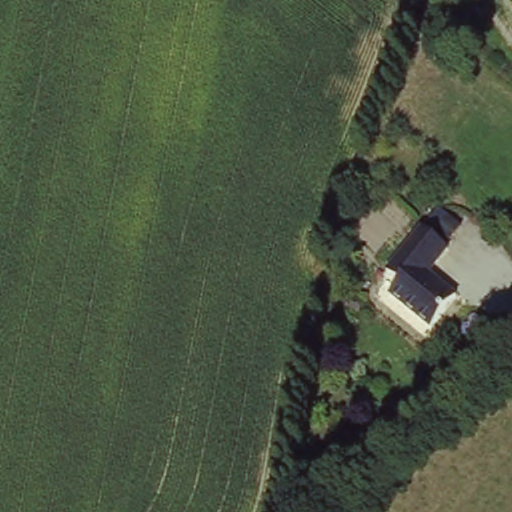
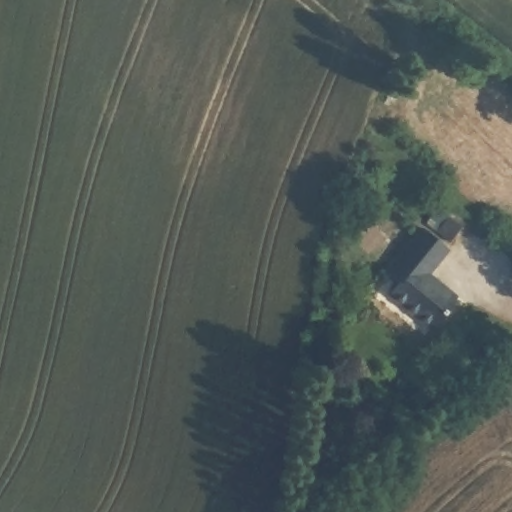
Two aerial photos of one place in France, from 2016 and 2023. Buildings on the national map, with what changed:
unchanged [(391,279),(377,270),(414,222),(443,246),(426,271),(452,293),(425,327),(381,293),(391,279)]

